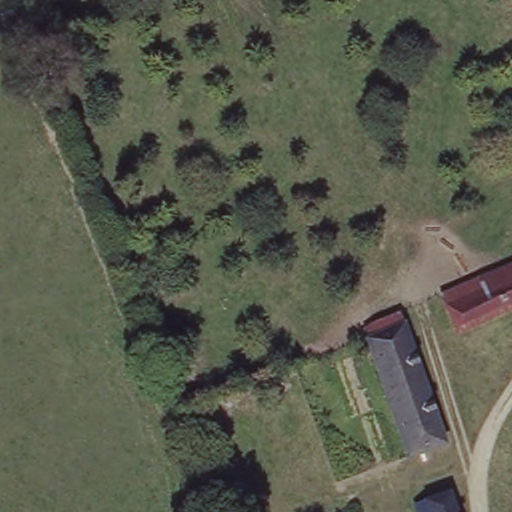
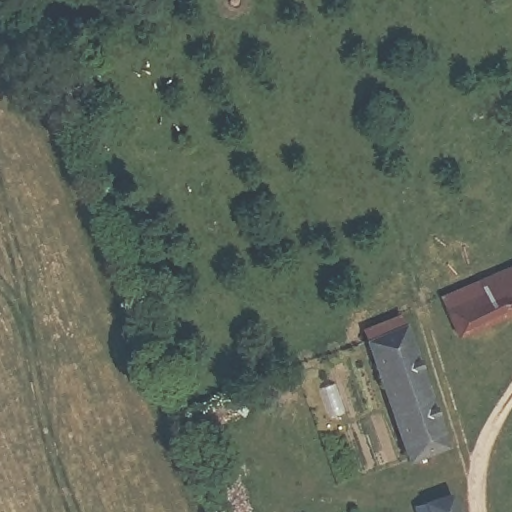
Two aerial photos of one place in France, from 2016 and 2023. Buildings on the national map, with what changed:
unchanged [(444,291),(512,262),(512,307),(459,328),(444,291)]
unchanged [(361,331),(358,321),(401,307),(407,322),(449,440),(412,453),(364,338),(361,331)]
unchanged [(454,489),(464,512),(421,512),(417,502),(454,489)]

